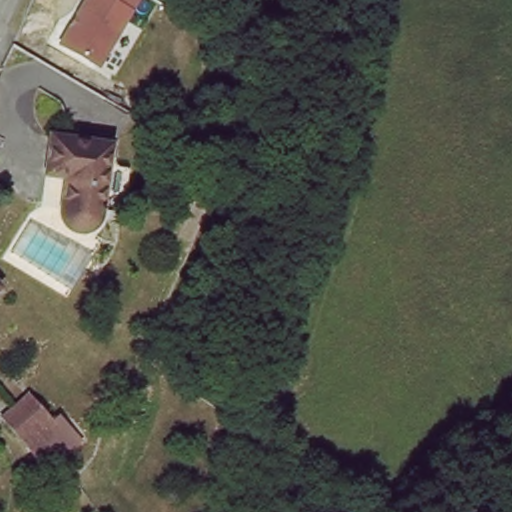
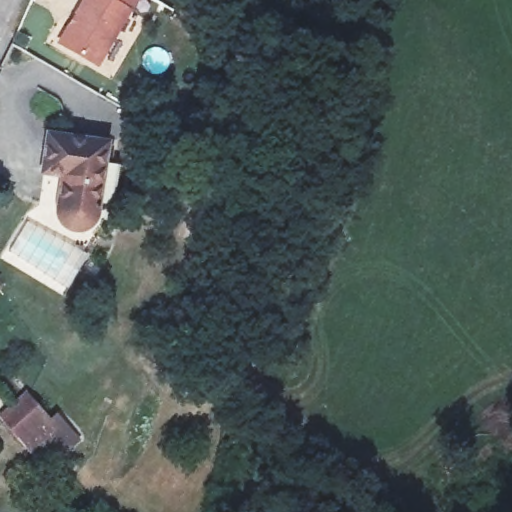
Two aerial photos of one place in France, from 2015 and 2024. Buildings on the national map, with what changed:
unchanged [(83,0),(138,0),(133,9),(99,66),(59,42),(83,0)]
unchanged [(104,126),(92,196),(85,206),(82,210),(76,212),(73,212),(70,212),(67,210),(65,209),(62,201),(60,192),(64,154),(44,151),(49,117),(104,126)]
unchanged [(37,456),(5,423),(19,410),(30,399),(62,434),(51,444),(37,456)]

